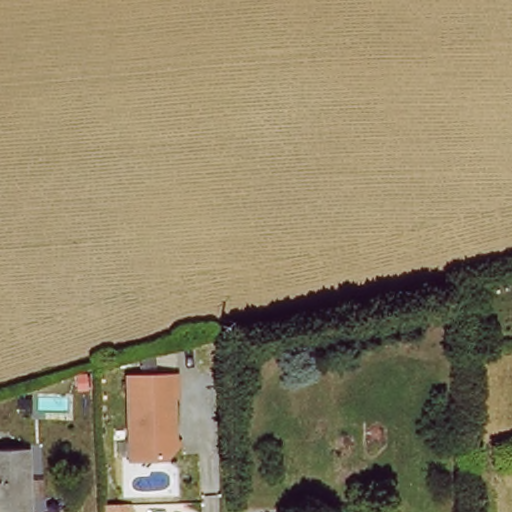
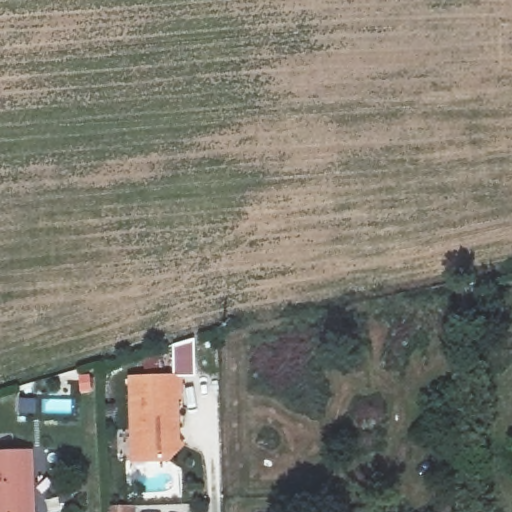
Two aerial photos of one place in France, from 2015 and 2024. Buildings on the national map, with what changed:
unchanged [(182,450),(168,464),(134,465),(132,383),(180,382),(181,401),(177,402),(178,433),(181,433),(182,450)]
unchanged [(27,457),(27,512),(0,512),(0,457),(27,457)]

